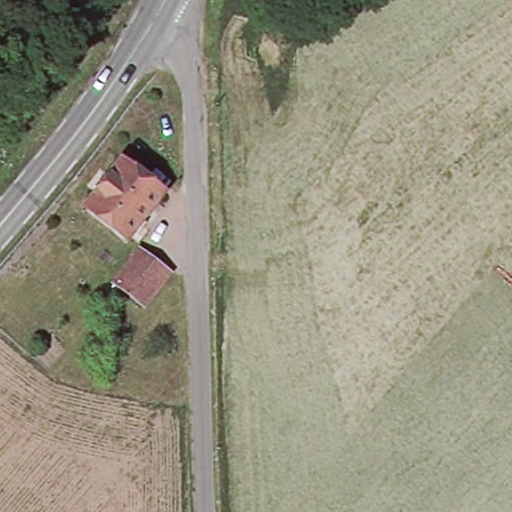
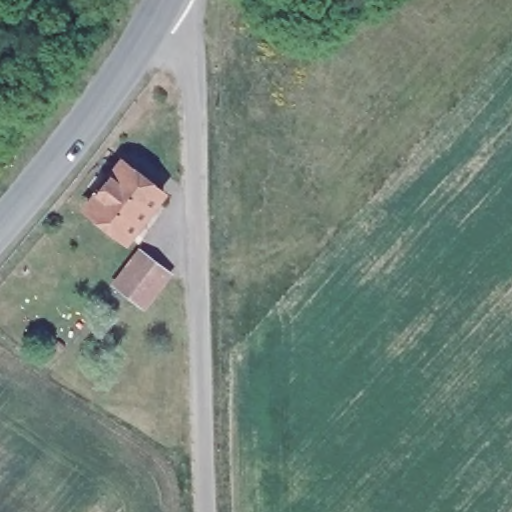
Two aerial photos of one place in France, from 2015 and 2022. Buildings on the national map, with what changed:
unchanged [(110,180),(123,164),(162,192),(123,240),(85,210),(99,193),(110,180)]
unchanged [(172,272),(146,305),(117,282),(142,249),(172,272)]

